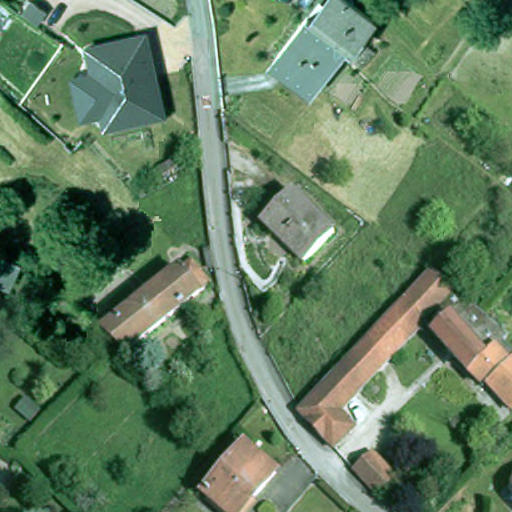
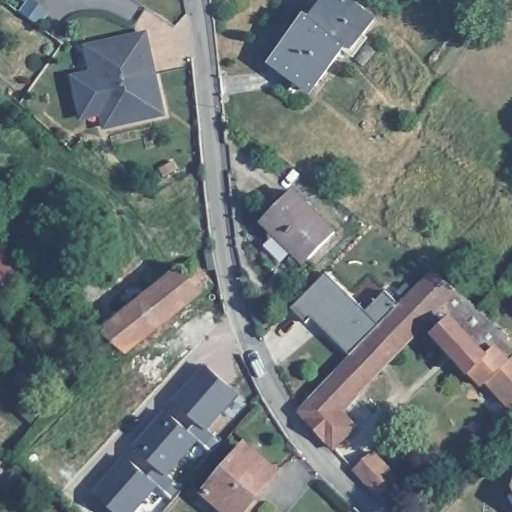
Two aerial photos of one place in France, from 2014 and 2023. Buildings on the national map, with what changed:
unchanged [(311,25),(327,0),(336,0),(369,24),(347,52),(342,49),(314,89),(275,60),(304,20),(311,25)]
unchanged [(82,45),(146,31),(166,116),(102,130),(100,115),(79,120),(69,75),(87,70),(82,45)]
unchanged [(337,236),(307,266),(265,226),(296,195),(337,236)]
unchanged [(212,289),(126,355),(121,351),(101,334),(193,263),(212,289)]
unchanged [(342,410),(359,425),(337,447),(305,409),(436,271),(479,305),(509,331),(502,340),(512,348),(512,397),(477,366),(472,371),(427,323),(357,395),(342,410)]
new [(397,304),(349,352),(312,317),(306,322),(292,308),(326,273),(366,311),(385,292),(397,304)]
new [(222,442),(214,452),(197,440),(168,475),(181,487),(172,496),(159,485),(138,512),(116,512),(92,492),(124,455),(148,475),(156,465),(133,447),(164,409),(189,429),(197,420),(174,401),(202,364),(239,394),(209,430),(222,442)]
unchanged [(392,508),(347,458),(367,441),(412,491),(397,505),(392,508)]
unchanged [(250,512),(227,512),(209,496),(249,450),(280,477),(250,512)]
unchanged [(67,497),(74,489),(81,495),(74,503),(67,497)]

